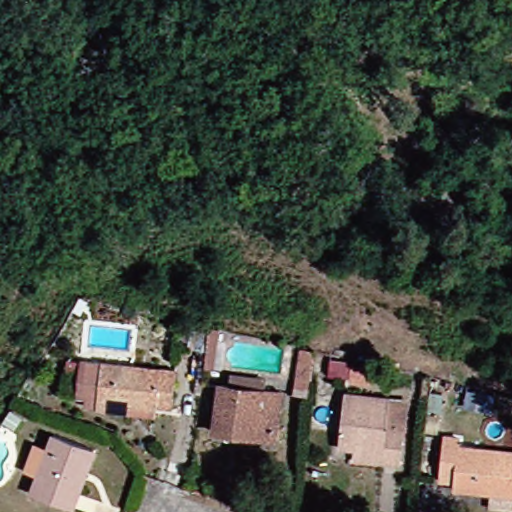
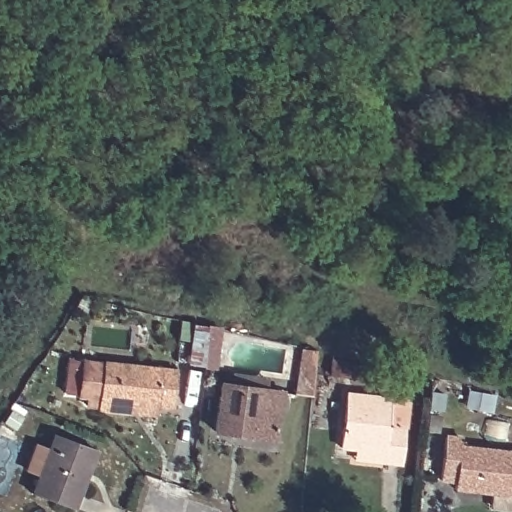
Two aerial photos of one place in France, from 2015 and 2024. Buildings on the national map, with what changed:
unchanged [(329,347),(327,377),(297,374),(299,340),(329,347)]
unchanged [(83,414),(83,396),(82,358),(180,365),(178,404),(135,402),(130,422),(83,414)]
unchanged [(281,425),(222,415),(230,367),(288,376),(281,425)]
unchanged [(351,439),(333,439),(337,391),(377,395),(405,396),(402,422),(397,462),(375,460),(349,458),(351,439)]
unchanged [(468,433),(466,446),(512,449),(512,512),(481,512),(483,491),(450,490),(451,484),(428,480),(434,430),(468,433)]
unchanged [(68,512),(66,512),(34,497),(44,474),(31,467),(40,445),(52,453),(59,437),(87,450),(68,512)]

